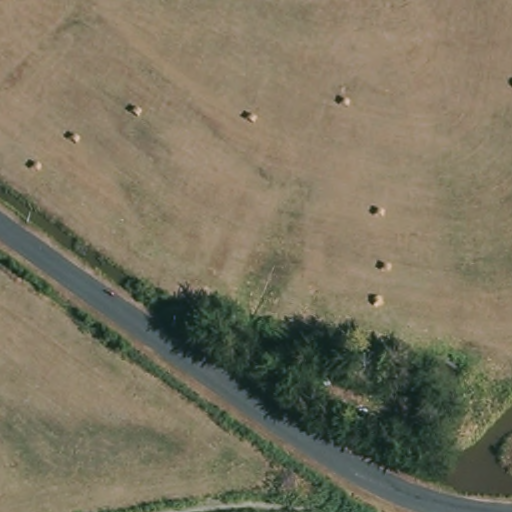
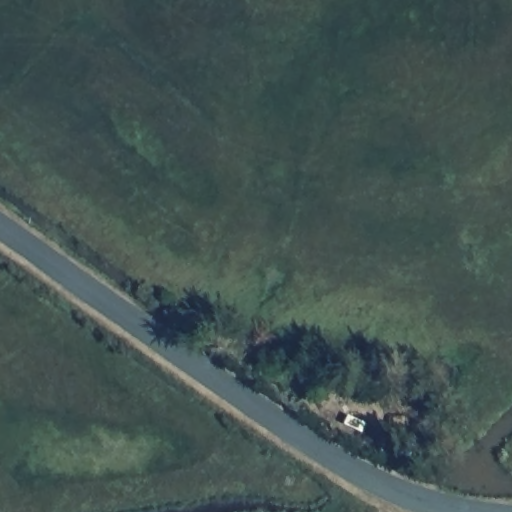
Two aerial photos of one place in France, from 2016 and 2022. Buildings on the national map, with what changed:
unchanged [(326,415),(336,396),(358,406),(347,424),(326,415)]

